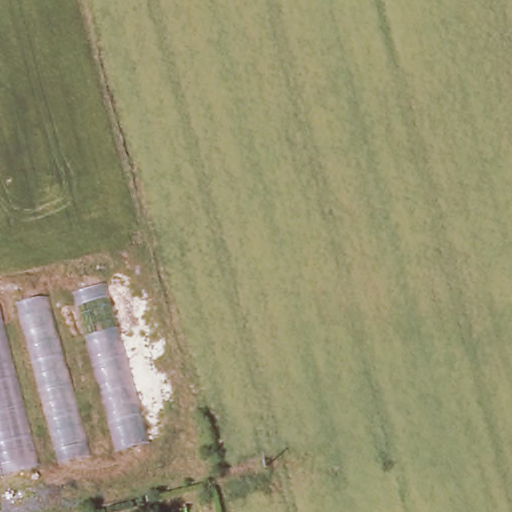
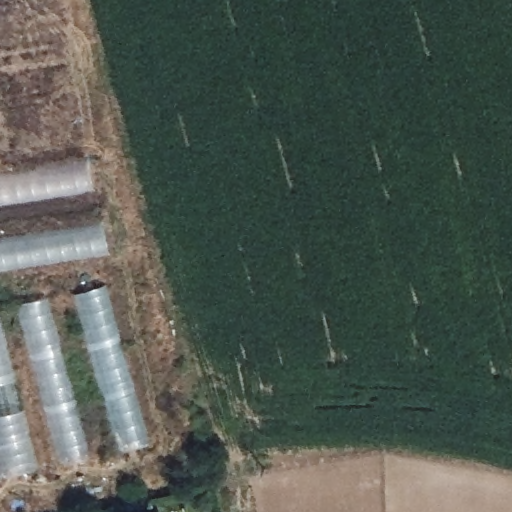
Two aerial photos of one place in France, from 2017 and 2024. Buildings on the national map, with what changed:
new [(90,160),(95,184),(0,200),(0,174),(90,160)]
new [(105,221),(110,249),(0,266),(0,237),(105,221)]
unchanged [(104,284),(147,448),(57,467),(13,304),(104,284)]
unchanged [(42,468),(0,477),(0,314),(42,468)]

